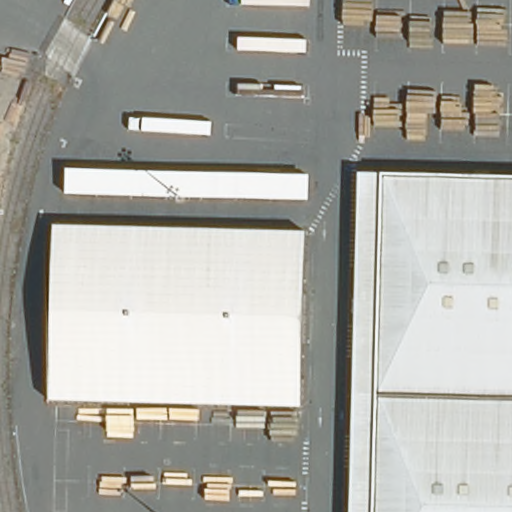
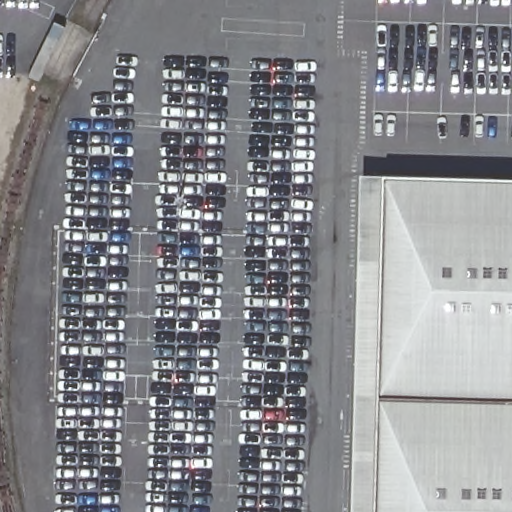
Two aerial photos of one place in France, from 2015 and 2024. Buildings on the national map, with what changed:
unchanged [(512,182),(512,512),(368,512),(369,459),(371,415),(376,179),(388,179),(512,182)]
demolished [(174,229),(305,232),(301,407),(276,407),(96,402),(49,401),(51,351),(51,293),(54,226),(174,229)]

